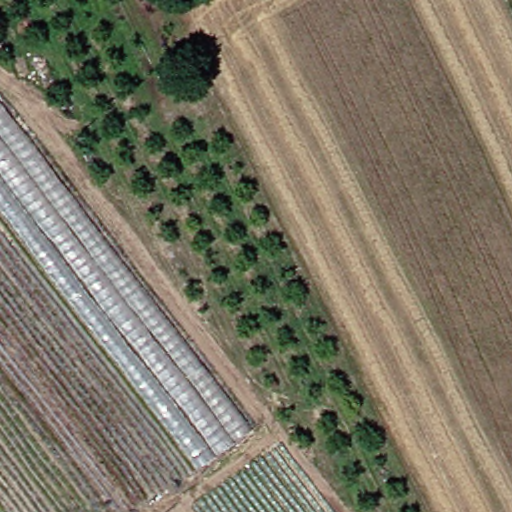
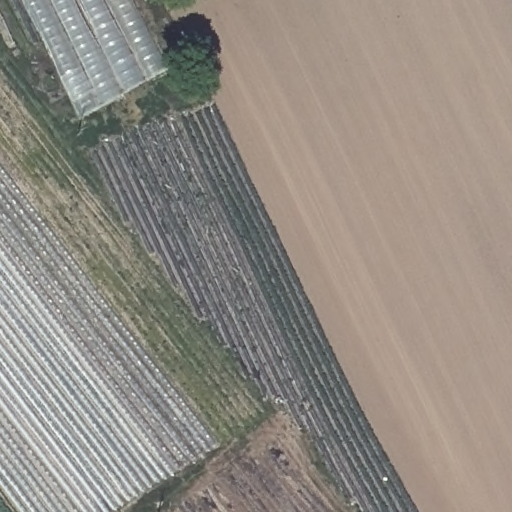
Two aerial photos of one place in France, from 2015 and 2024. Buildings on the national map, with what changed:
new [(166,72),(78,118),(20,0),(131,0),(166,72)]
demolished [(0,99),(253,430),(202,466),(0,201),(0,99)]

